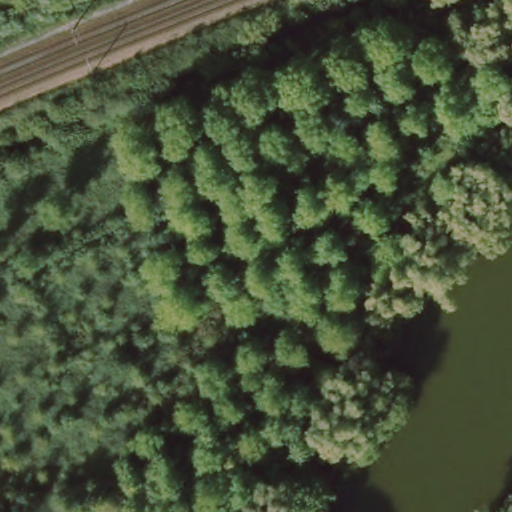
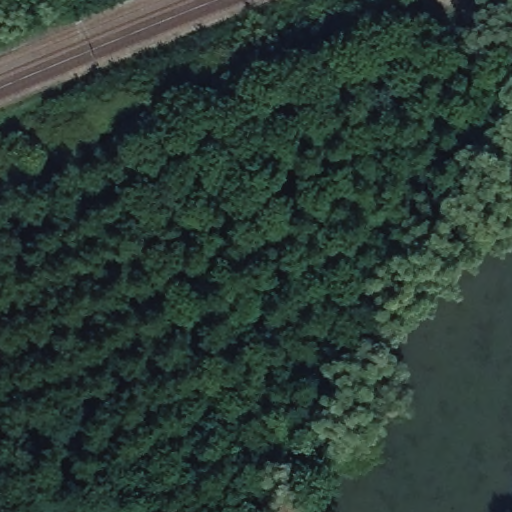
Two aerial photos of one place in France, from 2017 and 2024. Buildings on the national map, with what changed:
[]

